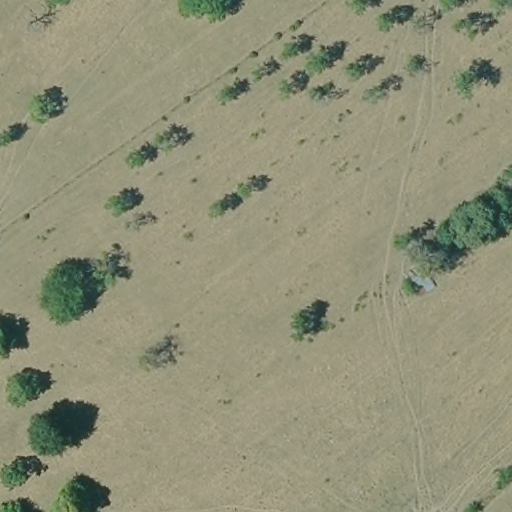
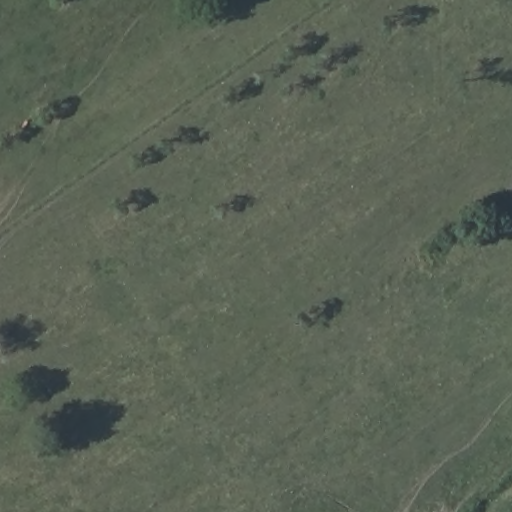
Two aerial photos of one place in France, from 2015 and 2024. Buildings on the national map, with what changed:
[]

